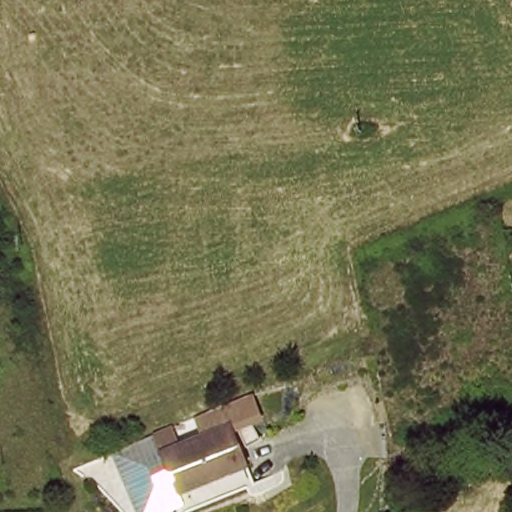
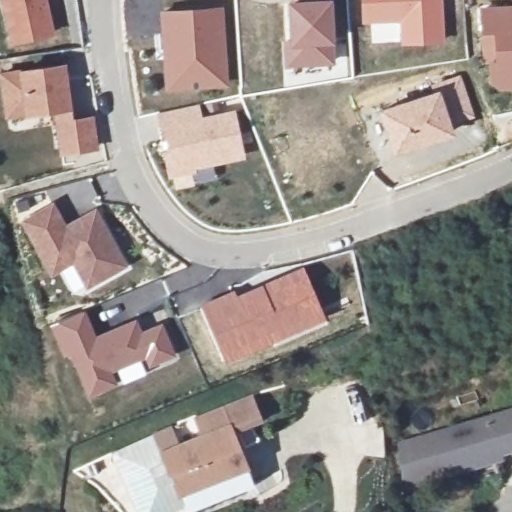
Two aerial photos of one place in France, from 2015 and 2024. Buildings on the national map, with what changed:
new [(13,48),(2,0),(49,0),(57,34),(13,48)]
new [(288,1),(292,0),(333,0),(334,44),(334,64),(283,67),(281,40),(289,37),(288,1)]
new [(371,44),(370,24),(361,24),(360,0),(442,0),(444,44),(371,44)]
new [(489,89),(489,60),(497,59),(494,33),(480,35),(479,6),(512,4),(512,88),(489,89)]
new [(225,6),(229,86),(165,89),(160,10),(225,6)]
new [(66,64),(74,120),(94,117),(99,151),(60,158),(55,111),(7,118),(2,74),(66,64)]
new [(433,92),(431,86),(460,75),(475,115),(451,123),(455,134),(395,155),(378,109),(433,92)]
new [(238,99),(248,156),(215,161),(218,180),(172,192),(159,114),(238,99)]
new [(53,200),(69,224),(95,209),(130,266),(89,290),(72,264),(55,275),(21,220),(53,200)]
new [(236,287),(237,291),(267,275),(302,264),(326,319),(292,334),(223,362),(197,303),(236,287)]
new [(87,308),(99,336),(137,320),(143,333),(163,324),(179,357),(150,371),(146,359),(115,374),(119,384),(90,396),(72,353),(66,356),(52,324),(87,308)]
new [(348,426),(354,398),(373,403),(367,431),(361,429),(348,426)]
unchanged [(205,444),(197,424),(251,403),(260,424),(228,435),(205,444)]
new [(500,458),(502,462),(403,493),(396,447),(512,410),(512,454),(500,458)]
new [(205,444),(179,455),(161,462),(177,501),(182,508),(170,512),(134,512),(109,455),(150,439),(149,434),(170,427),(178,444),(201,435),(205,444)]
unchanged [(254,439),(258,448),(243,453),(237,434),(251,429),(254,439)]
unchanged [(179,455),(205,444),(228,435),(244,475),(177,501),(161,462),(179,455)]

